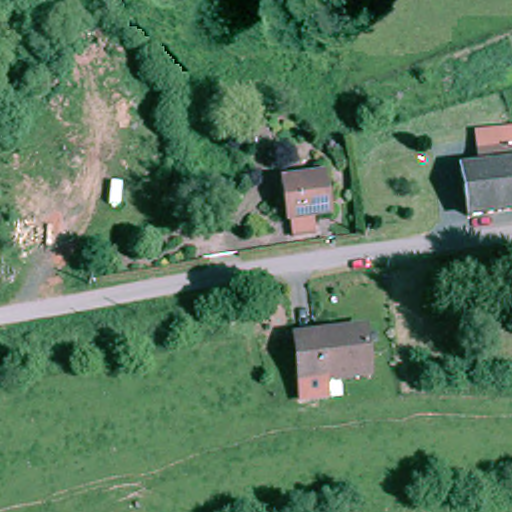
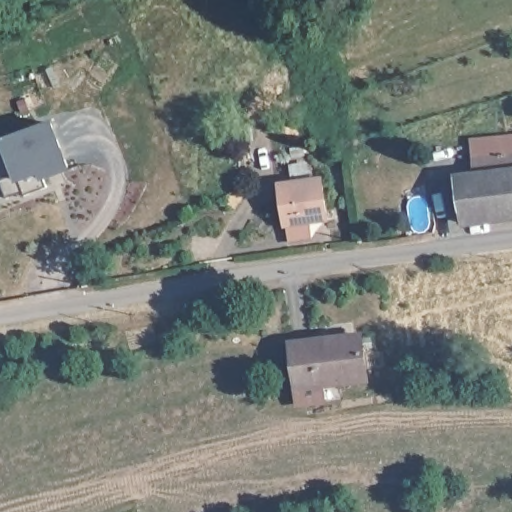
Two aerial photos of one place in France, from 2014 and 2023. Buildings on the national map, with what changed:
new [(69,169),(45,176),(48,185),(27,193),(25,190),(7,197),(1,180),(0,180),(0,153),(9,150),(5,140),(52,121),(69,169)]
new [(475,139),(512,134),(512,152),(477,156),(475,139)]
unchanged [(460,176),(480,174),(477,156),(512,152),(512,219),(468,225),(460,176)]
unchanged [(317,214),(319,231),(295,234),(294,216),(290,217),(286,176),(330,171),(335,211),(317,214)]
unchanged [(292,340),(362,333),(365,380),(295,385),(292,340)]

